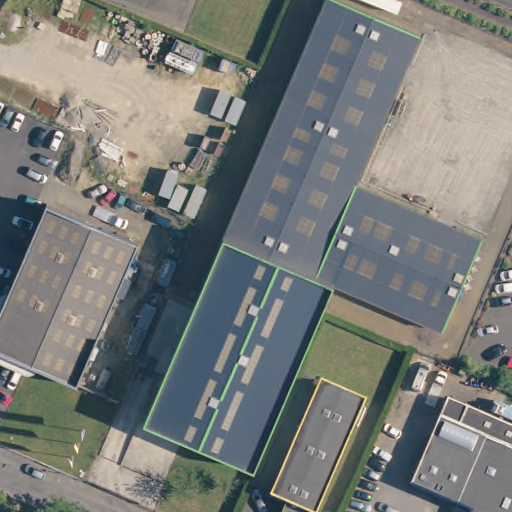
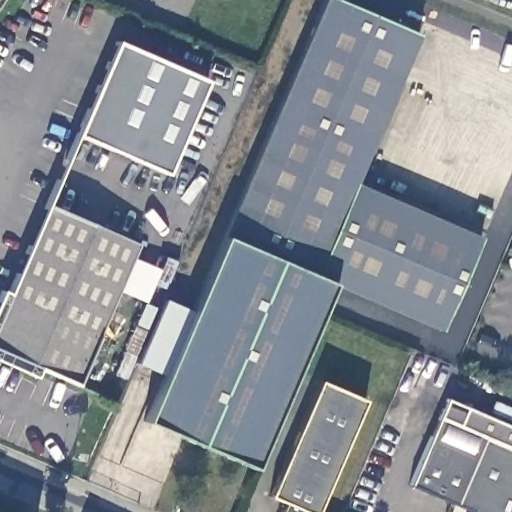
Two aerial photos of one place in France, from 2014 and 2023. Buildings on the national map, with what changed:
unchanged [(357,187),(484,244),(444,333),(333,284),(222,235),(322,0),(349,0),(423,32),(357,187)]
new [(167,172),(77,134),(117,42),(207,81),(167,172)]
unchanged [(75,385),(36,367),(31,370),(22,370),(0,361),(0,294),(9,290),(47,202),(139,242),(75,385)]
unchanged [(333,284),(322,310),(270,430),(254,467),(142,420),(210,262),(222,235),(333,284)]
unchanged [(287,508),(269,501),(318,386),(366,406),(318,512),(285,512),(287,508)]
unchanged [(512,418),(512,512),(473,512),(476,505),(415,480),(452,392),(512,418)]

